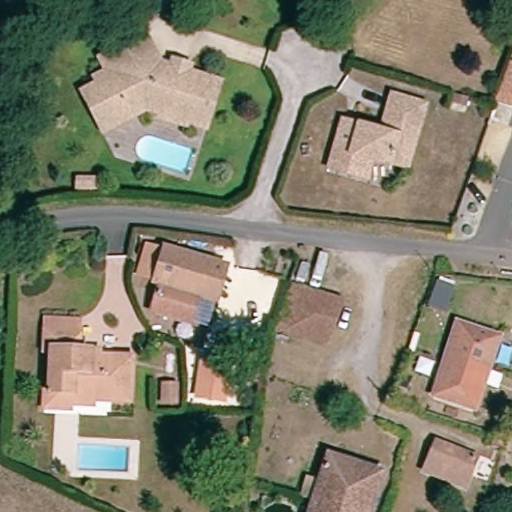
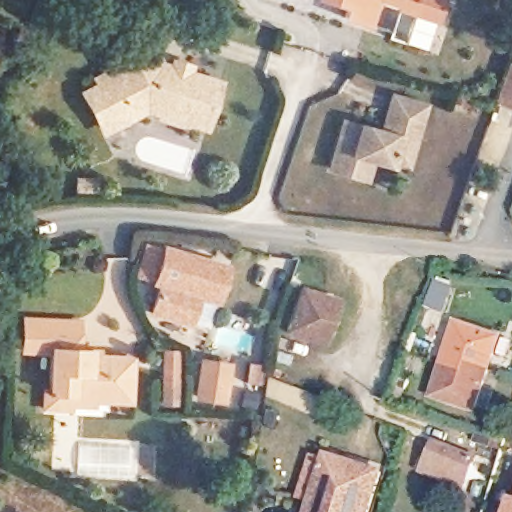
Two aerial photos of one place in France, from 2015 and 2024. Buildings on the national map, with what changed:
unchanged [(1,0),(2,0),(2,1),(1,0)]
new [(438,23),(411,15),(403,41),(388,36),(389,31),(374,26),(372,29),(341,20),(344,9),(315,0),(444,0),(438,23)]
unchanged [(0,39),(0,36),(1,36),(0,39)]
unchanged [(165,122),(166,117),(150,111),(134,119),(108,132),(98,112),(90,95),(103,88),(99,81),(113,75),(106,61),(149,39),(164,68),(177,73),(179,66),(193,71),(191,78),(221,88),(206,130),(190,125),(188,130),(165,122)]
unchanged [(511,63),(512,63),(512,105),(498,100),(511,63)]
unchanged [(386,114),(416,122),(403,167),(388,163),(387,166),(368,161),(367,167),(348,162),(345,174),(328,170),(339,131),(342,124),(350,126),(380,135),(386,114)]
unchanged [(217,300),(202,296),(197,313),(148,297),(153,280),(150,279),(150,277),(135,272),(145,242),(160,247),(162,242),(228,263),(217,300)]
unchanged [(339,304),(324,348),(274,330),(290,286),(339,304)]
unchanged [(448,361),(461,324),(503,338),(490,375),(478,412),(435,398),(448,361)]
unchanged [(47,362),(49,332),(85,335),(83,365),(58,363),(47,362)]
unchanged [(201,359),(236,365),(231,405),(194,398),(201,359)]
unchanged [(45,422),(46,401),(55,402),(58,363),(83,365),(98,366),(109,367),(108,375),(135,377),(133,410),(94,408),(93,416),(70,415),(70,424),(45,422)]
unchanged [(438,443),(480,460),(467,490),(425,473),(438,443)]
unchanged [(329,458),(384,476),(372,512),(341,512),(315,504),(329,458)]
unchanged [(341,512),(312,512),(315,504),(341,512)]

